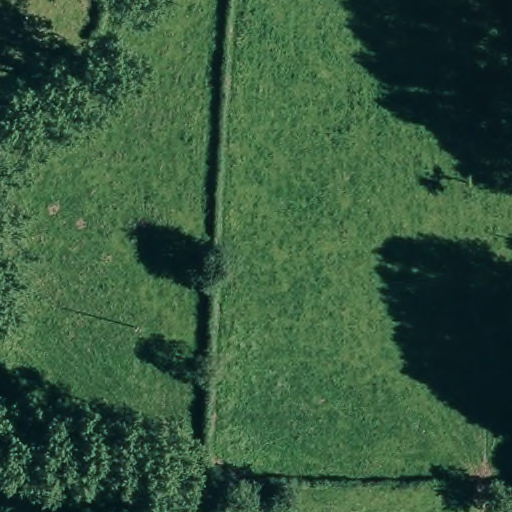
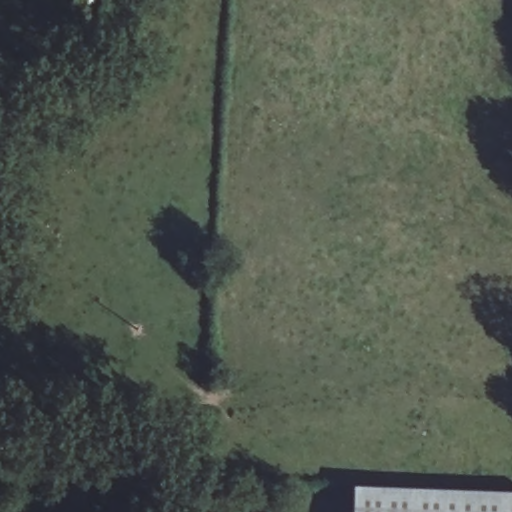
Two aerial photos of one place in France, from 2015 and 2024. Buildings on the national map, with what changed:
new [(512,491),(512,512),(354,512),(355,485),(512,491)]

